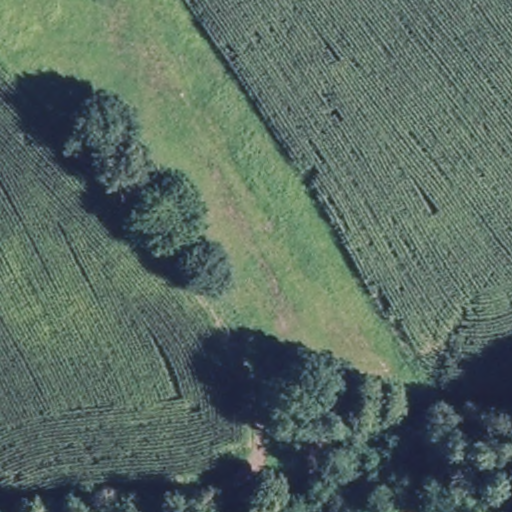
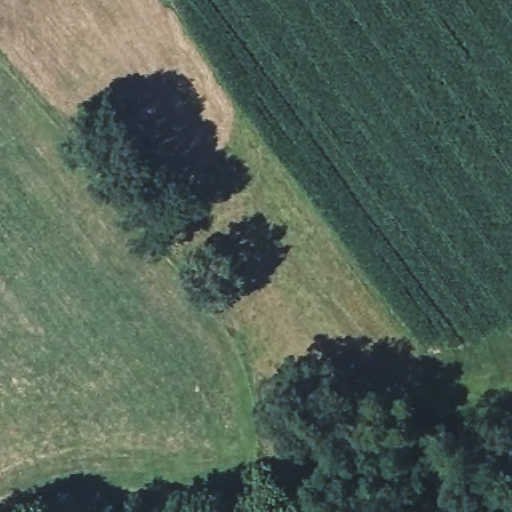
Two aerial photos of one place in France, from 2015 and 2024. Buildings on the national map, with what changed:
[]

